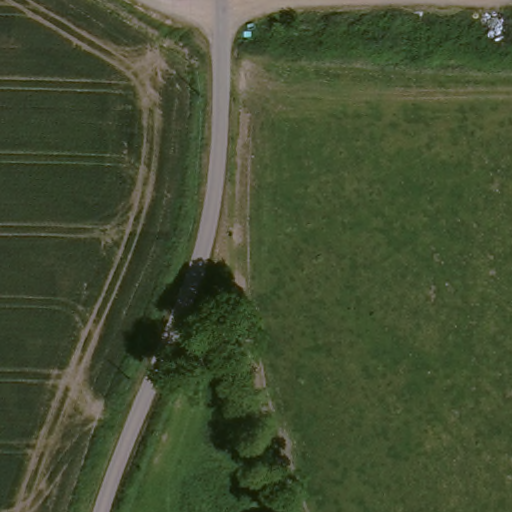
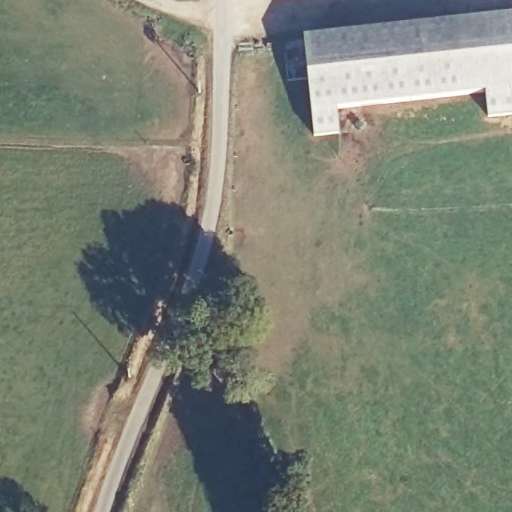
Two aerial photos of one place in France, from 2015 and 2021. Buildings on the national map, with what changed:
new [(320,124),(317,99),(309,25),(512,12),(512,89),(342,96),(342,133),(320,124)]

